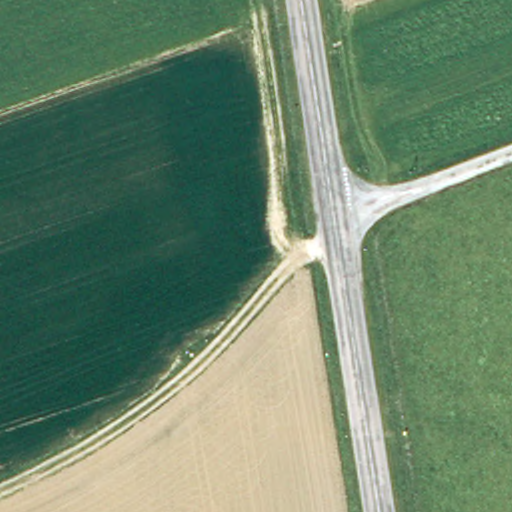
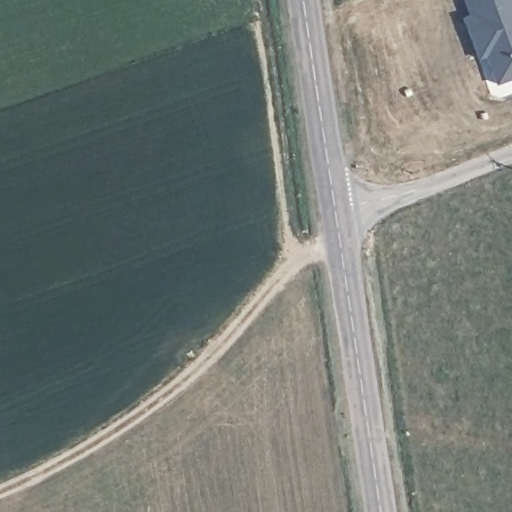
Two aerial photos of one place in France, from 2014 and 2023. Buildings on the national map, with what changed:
new [(495,85),(484,56),(477,59),(463,18),(469,15),(463,0),(512,0),(512,78),(495,85)]

